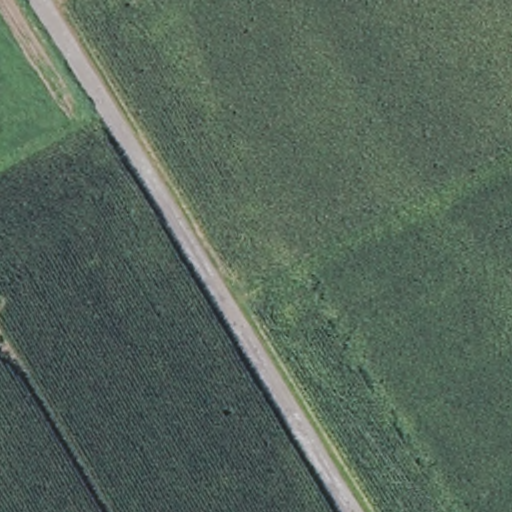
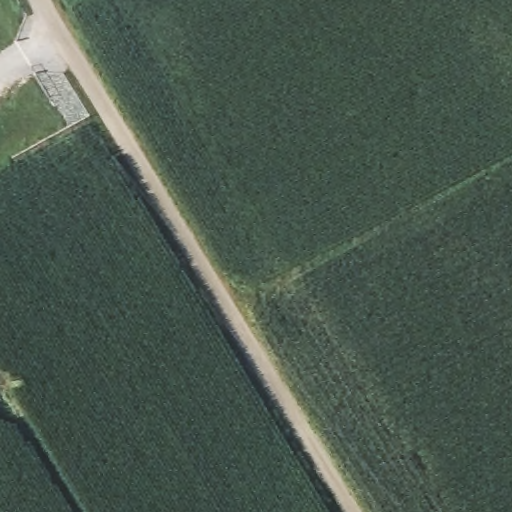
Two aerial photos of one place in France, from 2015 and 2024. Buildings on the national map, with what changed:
[]

